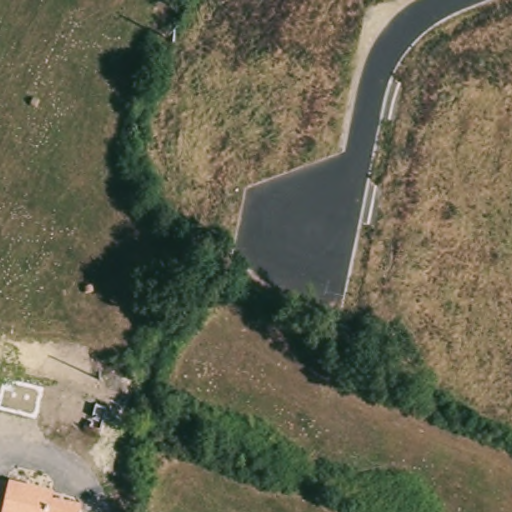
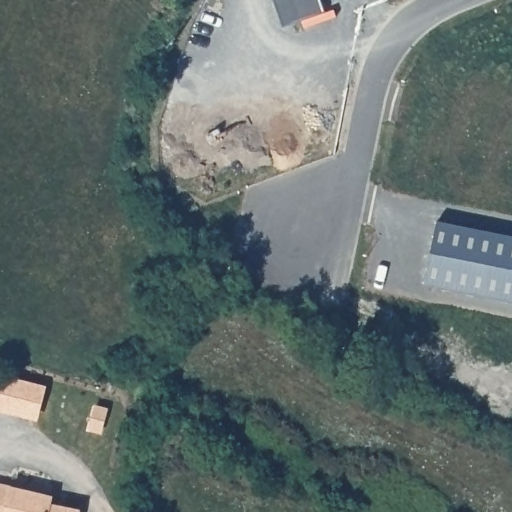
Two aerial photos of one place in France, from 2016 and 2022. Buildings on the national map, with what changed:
new [(438,221),(512,236),(512,302),(425,285),(438,221)]
unchanged [(51,505),(78,510),(77,512),(0,512),(0,482),(52,495),(51,505)]

